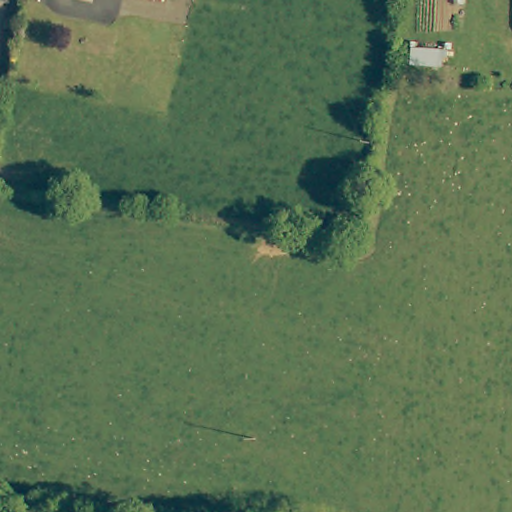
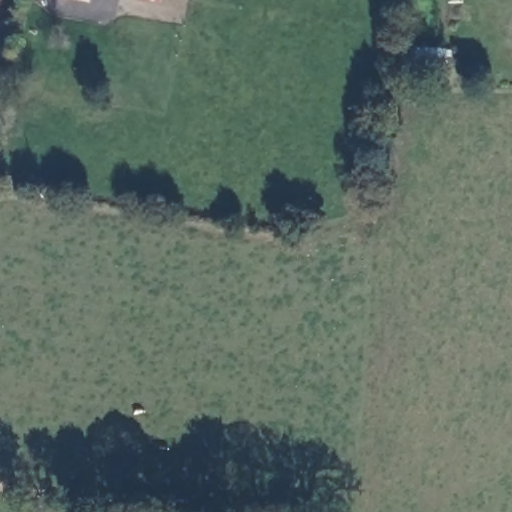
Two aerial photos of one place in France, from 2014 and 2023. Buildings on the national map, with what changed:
unchanged [(434,48),(434,63),(404,61),(405,46),(434,48)]

